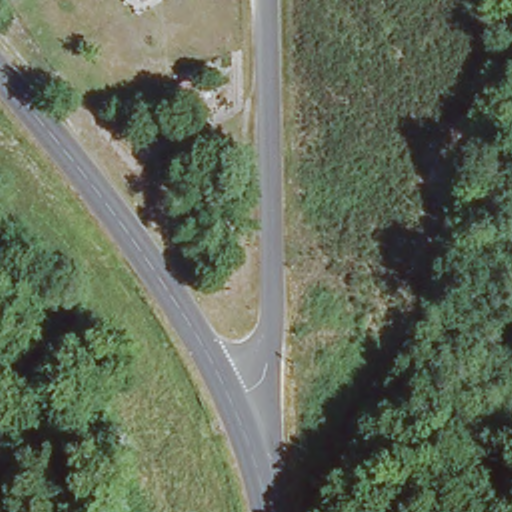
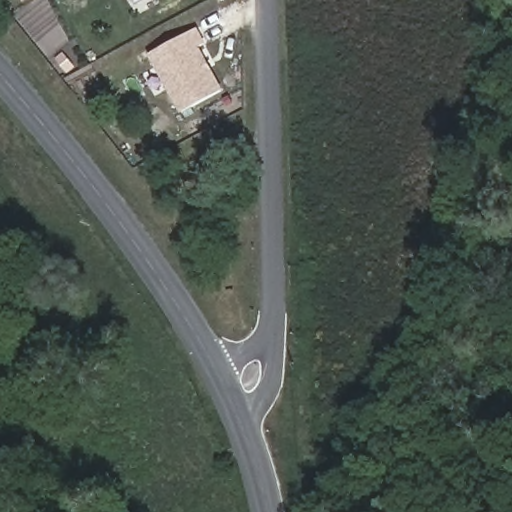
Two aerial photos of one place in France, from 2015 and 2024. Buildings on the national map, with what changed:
new [(21,0),(28,0),(22,3),(21,0)]
new [(192,28),(200,43),(194,47),(218,91),(179,112),(146,60),(192,28)]

